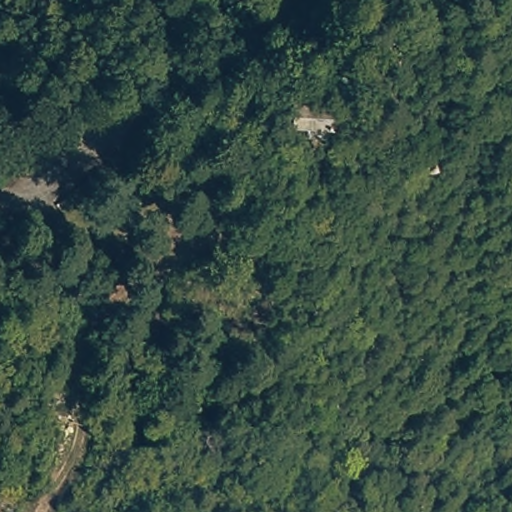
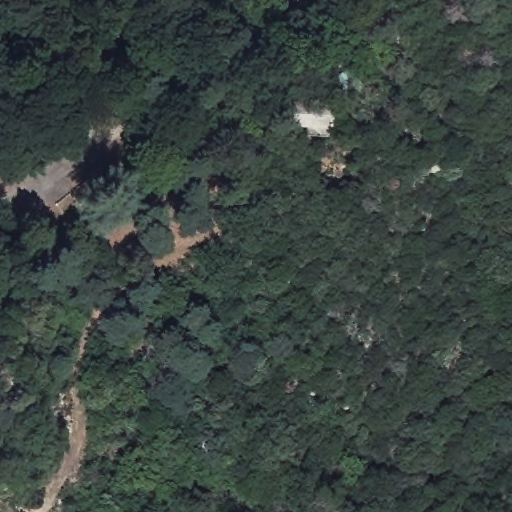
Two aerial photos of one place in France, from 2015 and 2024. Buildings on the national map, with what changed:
unchanged [(292,102),(334,102),(334,131),(292,130),(292,102)]

